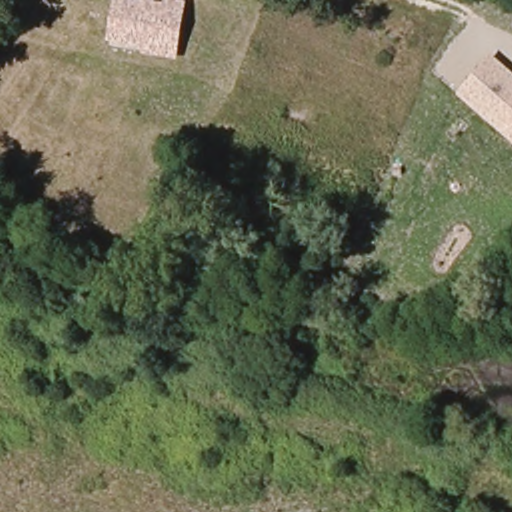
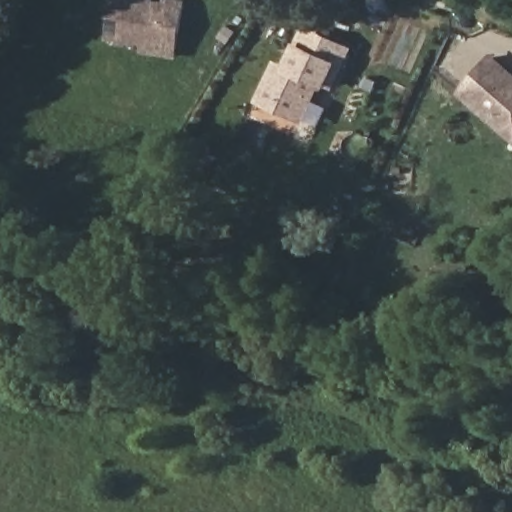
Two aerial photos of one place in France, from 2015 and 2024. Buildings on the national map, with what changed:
unchanged [(177,59),(141,55),(142,47),(109,42),(115,0),(140,0),(165,3),(165,0),(173,0),(185,2),(177,59)]
new [(353,49),(331,95),(320,90),(303,126),(255,102),(275,60),(285,65),(303,26),(353,49)]
unchanged [(492,56),(512,73),(512,143),(456,95),(492,56)]

